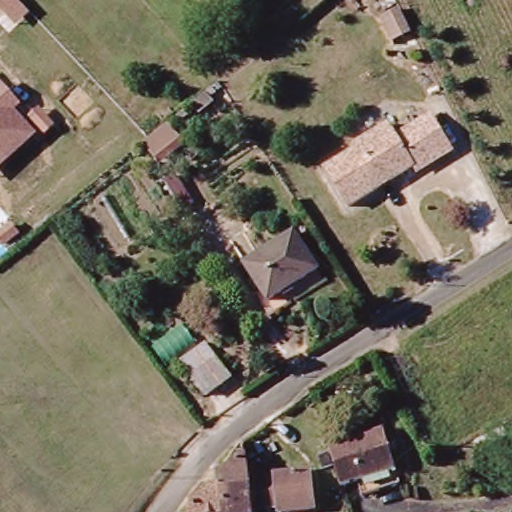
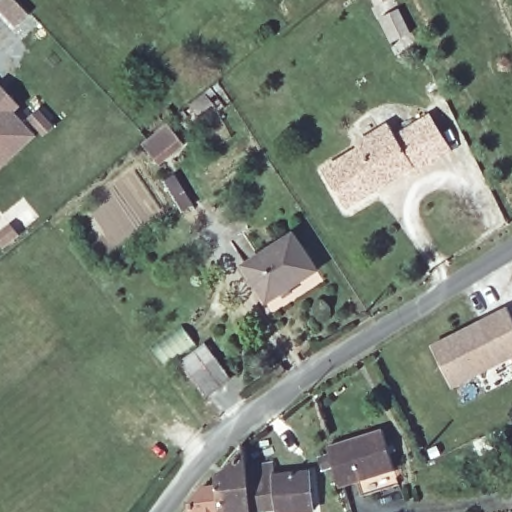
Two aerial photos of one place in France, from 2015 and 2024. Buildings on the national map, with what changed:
unchanged [(21,106),(16,111),(38,135),(0,170),(0,84),(21,106)]
unchanged [(199,114),(192,107),(204,95),(212,104),(199,114)]
unchanged [(412,166),(346,207),(323,169),(358,148),(355,144),(387,124),(395,138),(412,128),(429,116),(449,150),(432,161),(415,172),(412,166)]
unchanged [(163,131),(171,141),(149,158),(142,148),(163,131)]
unchanged [(293,234),(316,270),(267,303),(244,267),(293,234)]
new [(512,315),(512,360),(451,391),(429,346),(508,307),(512,315)]
unchanged [(229,379),(204,397),(190,377),(215,359),(229,379)]
unchanged [(381,430),(394,472),(339,489),(326,447),(381,430)]
unchanged [(218,483),(216,471),(225,468),(235,455),(234,446),(241,439),(244,463),(251,508),(251,512),(221,512),(221,509),(199,512),(189,512),(188,501),(202,484),(218,483)]
unchanged [(272,458),(274,473),(307,468),(312,507),(279,512),(278,504),(251,508),(244,463),(272,458)]

